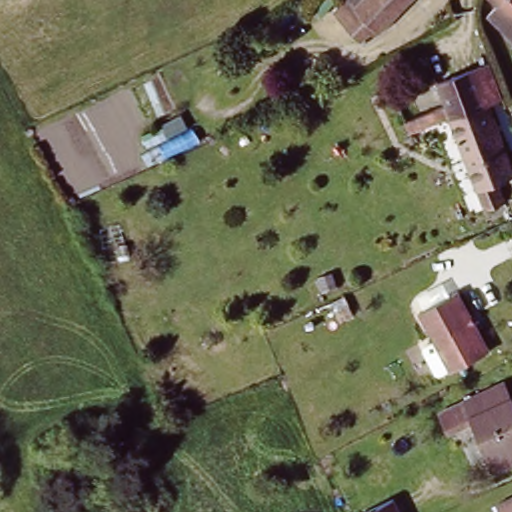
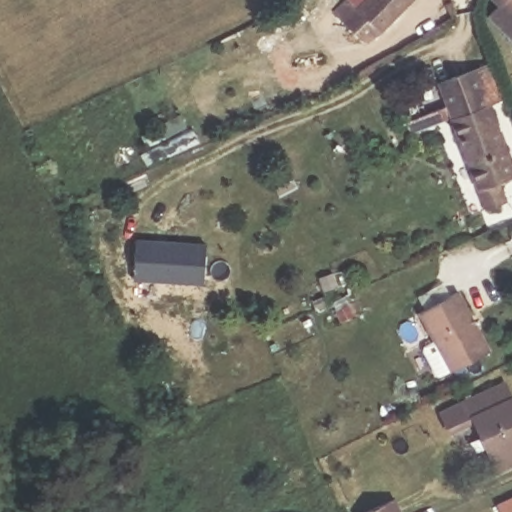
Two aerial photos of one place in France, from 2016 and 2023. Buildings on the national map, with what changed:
unchanged [(387,27),(372,37),(341,7),(347,0),(413,0),(387,27)]
unchanged [(508,4),(504,0),(512,0),(512,30),(497,15),(508,4)]
unchanged [(454,99),(446,79),(482,65),(496,59),(509,94),(495,100),(512,144),(512,173),(504,176),(511,195),(493,202),(454,99)]
unchanged [(456,110),(416,125),(412,114),(452,100),(456,110)]
new [(137,241),(206,245),(203,284),(134,279),(137,241)]
unchanged [(493,338),(456,359),(425,303),(463,282),(493,338)]
unchanged [(504,386),(511,401),(512,401),(512,463),(497,470),(467,402),(504,386)]
unchanged [(382,499),(388,512),(367,512),(365,507),(382,499)]
unchanged [(512,503),(512,512),(497,512),(497,510),(512,503)]
unchanged [(401,512),(392,512),(399,508),(401,512)]

